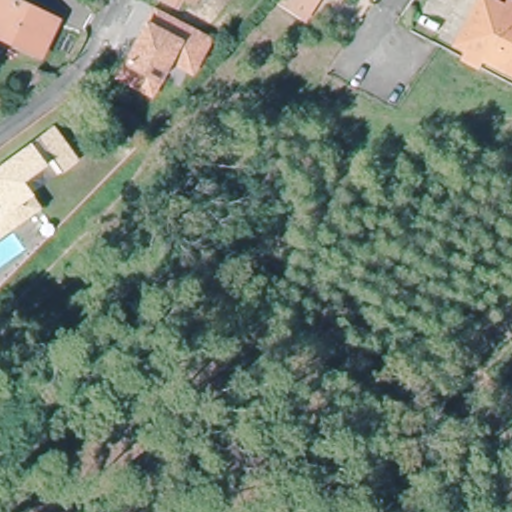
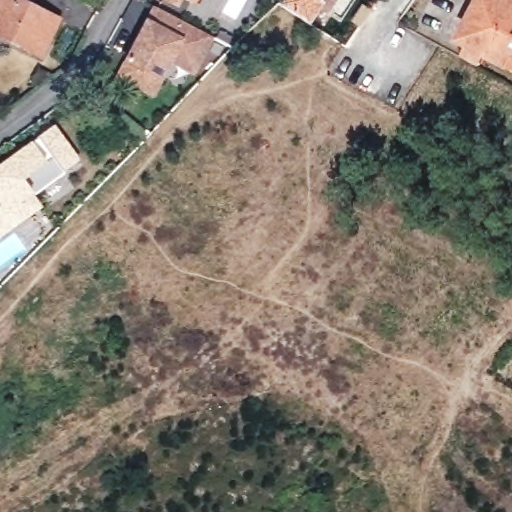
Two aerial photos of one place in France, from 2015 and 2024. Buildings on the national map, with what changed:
unchanged [(0,38),(0,0),(20,0),(57,14),(42,54),(0,38)]
unchanged [(159,0),(175,0),(172,6),(159,0)]
unchanged [(185,0),(192,0),(191,3),(185,0)]
unchanged [(277,1),(277,0),(319,0),(305,19),(277,1)]
unchanged [(489,59),(485,68),(471,62),(476,53),(459,45),(480,0),(494,0),(507,6),(510,0),(512,0),(512,70),(500,65),(489,59)]
unchanged [(215,37),(194,79),(170,66),(152,99),(115,81),(153,6),(215,37)]
unchanged [(0,237),(0,236),(0,167),(55,122),(77,153),(59,168),(54,161),(31,180),(36,186),(45,198),(0,237)]

